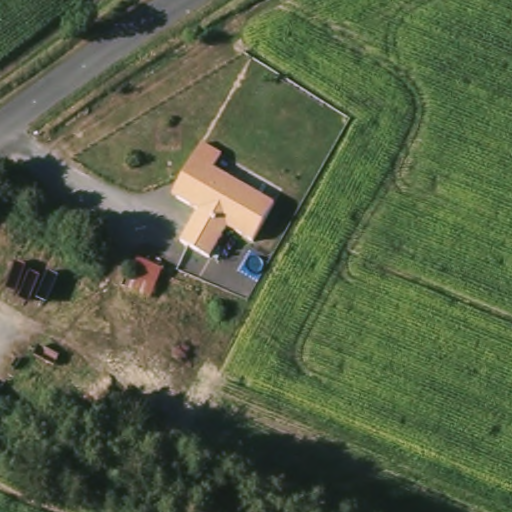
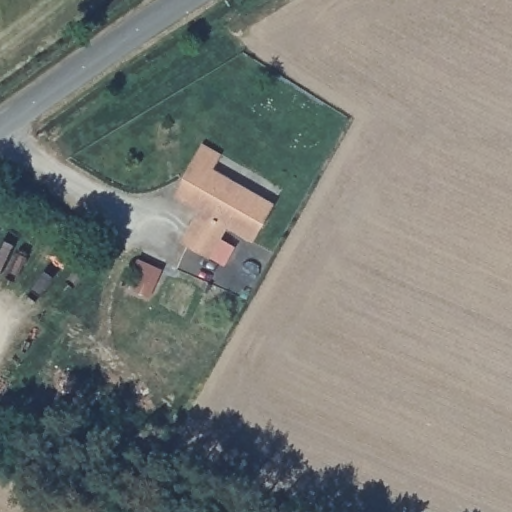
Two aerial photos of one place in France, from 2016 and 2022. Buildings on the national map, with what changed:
unchanged [(252,239),(226,223),(208,254),(180,237),(199,207),(173,191),(204,140),(222,152),(214,166),(274,203),(252,239)]
unchanged [(137,259),(163,270),(152,297),(124,289),(137,259)]

